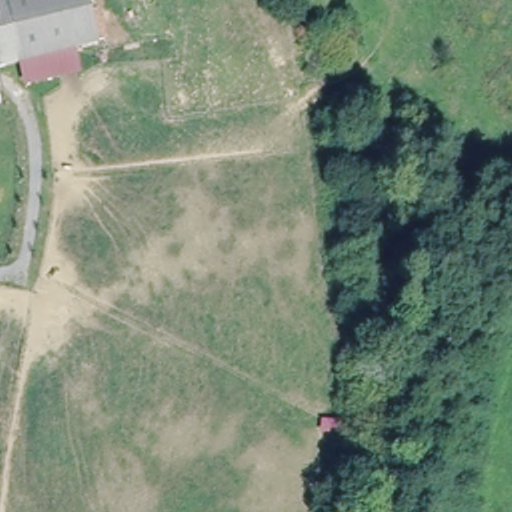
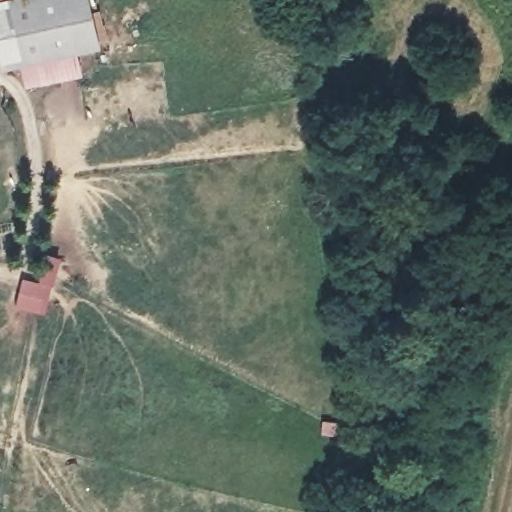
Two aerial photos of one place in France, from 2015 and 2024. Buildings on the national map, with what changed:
unchanged [(1,64),(0,59),(0,0),(88,0),(97,43),(1,64)]
new [(52,291),(42,317),(12,303),(27,273),(37,277),(49,251),(63,258),(48,289),(52,291)]

